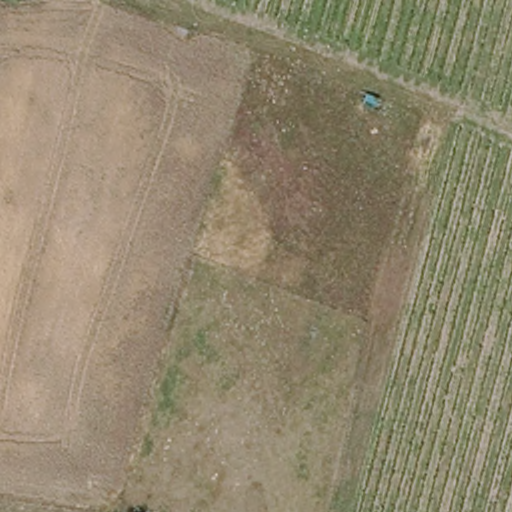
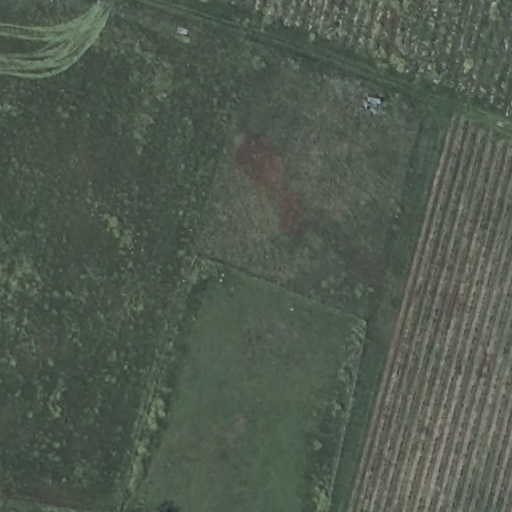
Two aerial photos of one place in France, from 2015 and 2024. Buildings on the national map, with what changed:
[]

